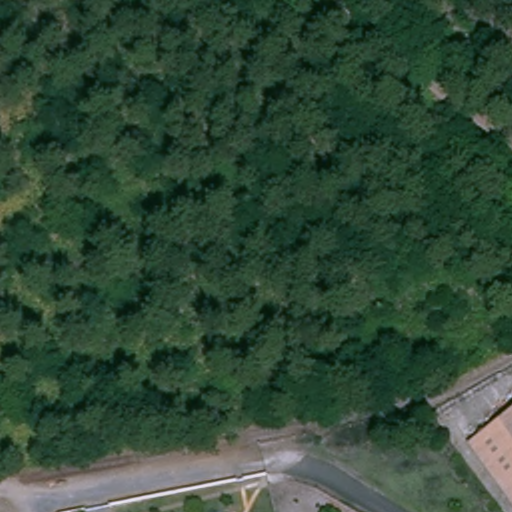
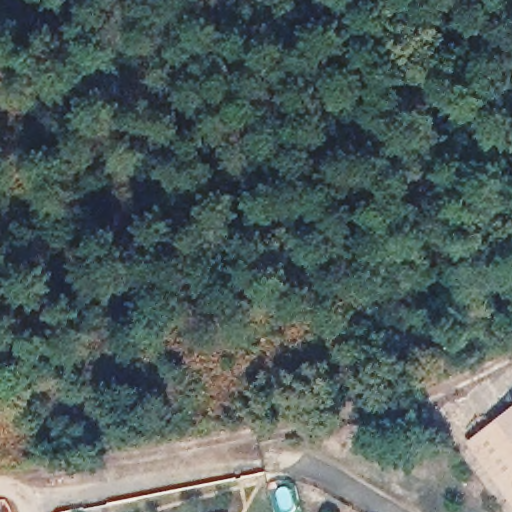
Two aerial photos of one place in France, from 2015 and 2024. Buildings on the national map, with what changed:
unchanged [(512,415),(512,503),(471,445),(512,415)]

